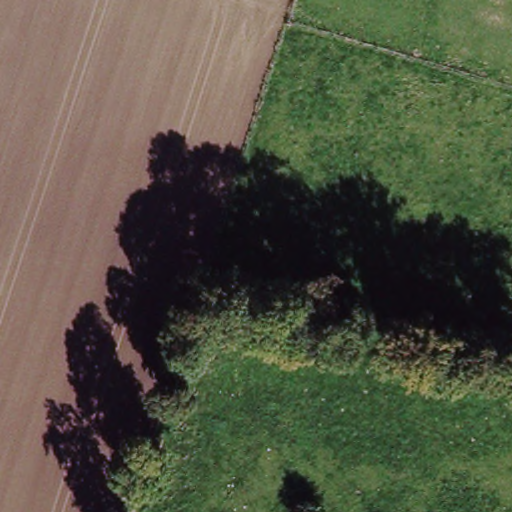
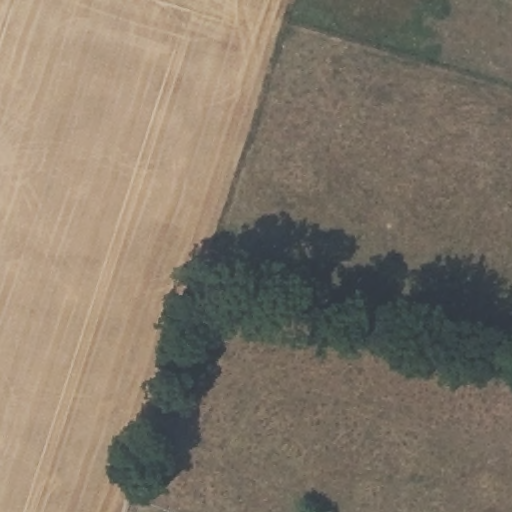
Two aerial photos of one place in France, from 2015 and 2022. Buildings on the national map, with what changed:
[]

